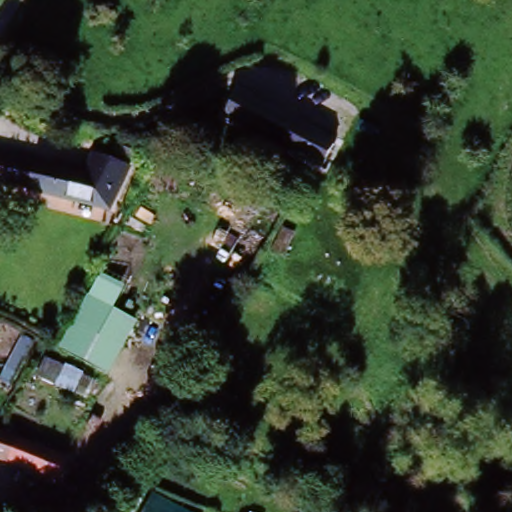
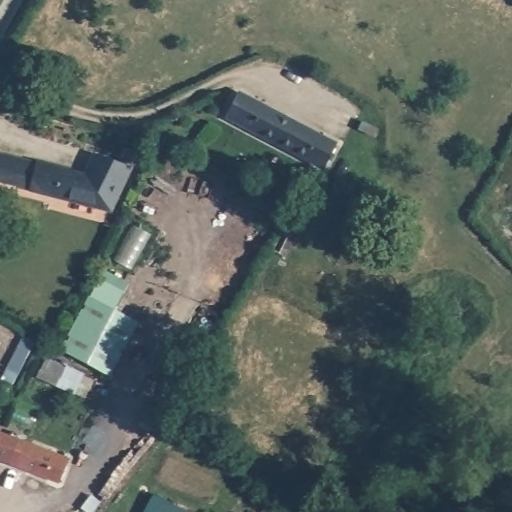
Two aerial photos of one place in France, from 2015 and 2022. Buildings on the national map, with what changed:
unchanged [(270,110),(339,146),(327,169),(229,118),(240,95),(258,104),(260,101),(271,107),(270,110)]
unchanged [(98,182),(108,161),(133,169),(110,214),(0,182),(0,158),(98,182)]
unchanged [(25,336),(36,341),(14,384),(4,378),(25,336)]
unchanged [(89,496),(0,463),(0,435),(1,436),(97,474),(89,496)]
unchanged [(183,512),(143,512),(152,495),(183,512)]

